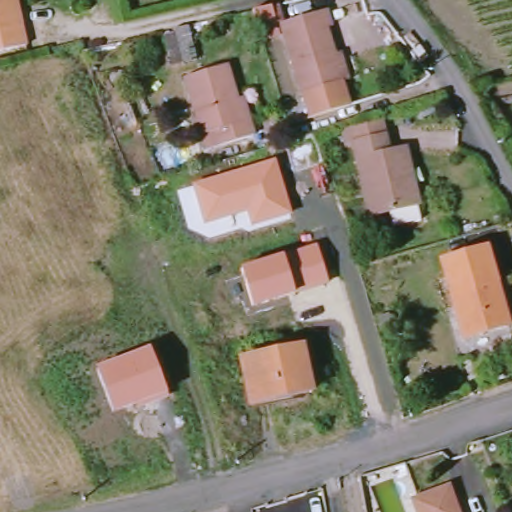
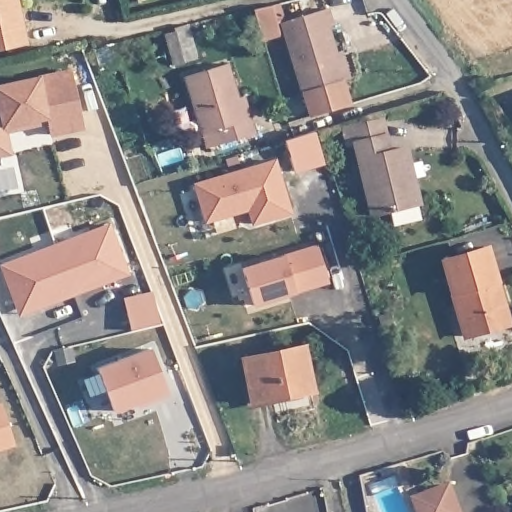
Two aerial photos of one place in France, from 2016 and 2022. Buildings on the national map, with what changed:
unchanged [(18,5),(13,6),(18,28),(23,27),(28,45),(0,52),(0,0),(17,0),(18,5)]
unchanged [(267,5),(271,21),(255,25),(251,9),(267,5)]
unchanged [(323,7),(328,24),(323,26),(330,52),(338,50),(346,76),(339,79),(346,103),(304,116),(275,23),(323,7)]
unchanged [(224,62),(241,120),(246,119),(251,134),(213,146),(209,132),(198,135),(179,76),(224,62)]
new [(52,135),(48,120),(7,130),(12,155),(0,158),(0,85),(41,75),(70,69),(84,130),(52,135)]
unchanged [(395,148),(403,179),(408,178),(414,203),(366,215),(350,145),(342,146),(337,127),(375,117),(380,135),(384,150),(395,148)]
unchanged [(275,161),(292,218),(254,227),(248,214),(205,225),(193,185),(275,161)]
new [(19,316),(0,267),(0,264),(109,224),(128,276),(19,316)]
unchanged [(318,246),(329,283),(251,305),(240,268),(318,246)]
unchanged [(487,247),(509,323),(464,337),(442,261),(487,247)]
unchanged [(303,346),(313,390),(252,402),(242,359),(303,346)]
unchanged [(150,348),(169,399),(142,410),(138,403),(116,413),(96,367),(150,348)]
new [(0,450),(0,403),(14,445),(0,450)]
unchanged [(442,481),(453,512),(411,512),(405,495),(442,481)]

